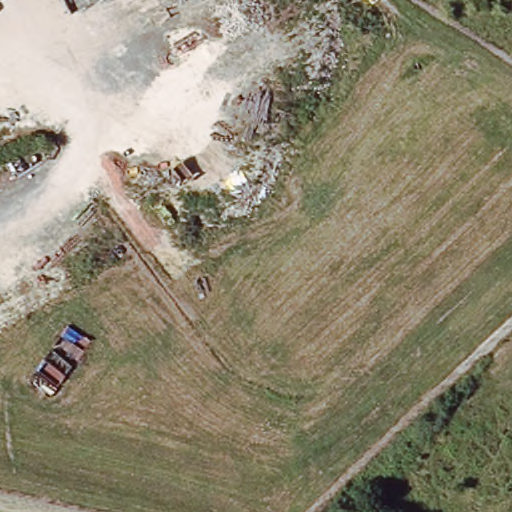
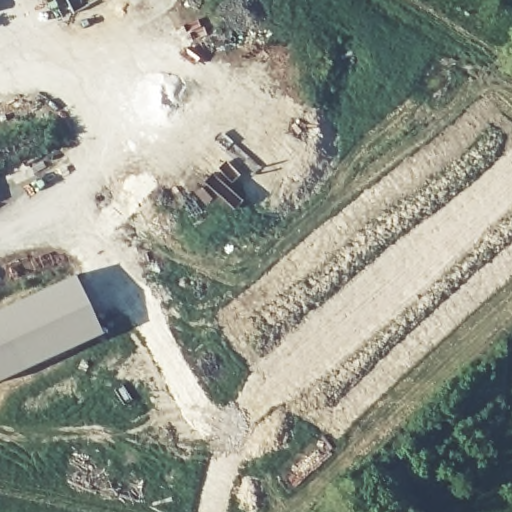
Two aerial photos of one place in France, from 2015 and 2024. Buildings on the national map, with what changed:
new [(92,336),(0,381),(0,312),(64,280),(92,336)]

